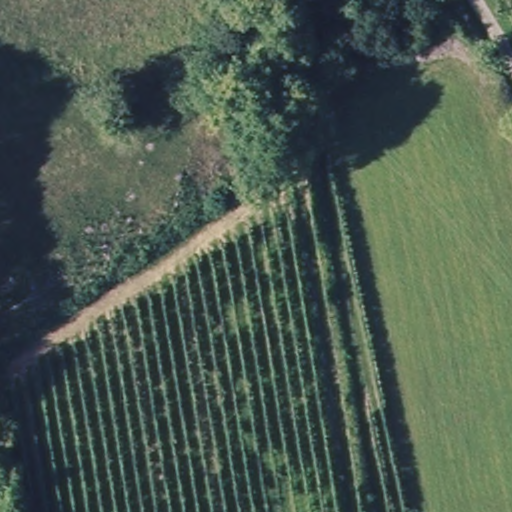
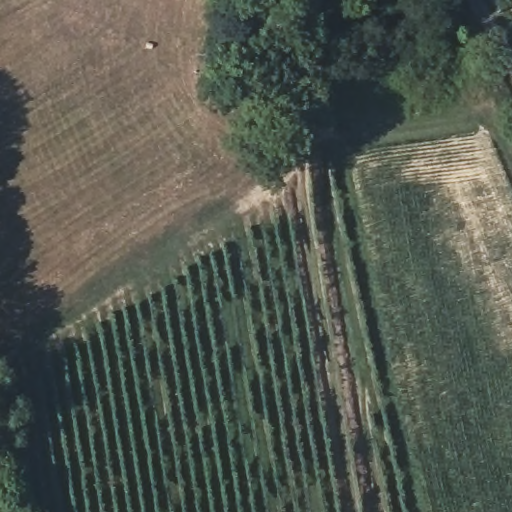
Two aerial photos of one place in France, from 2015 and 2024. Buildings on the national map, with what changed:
[]

